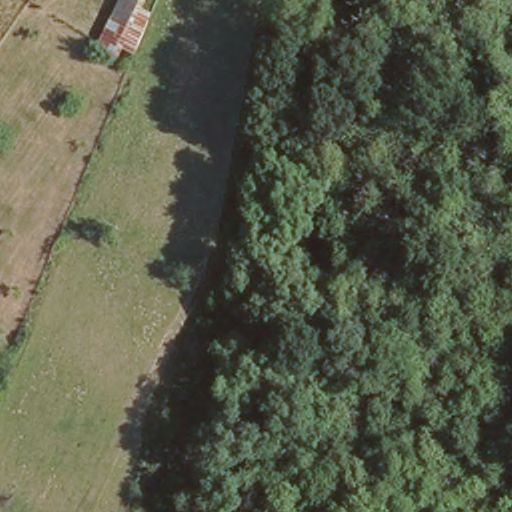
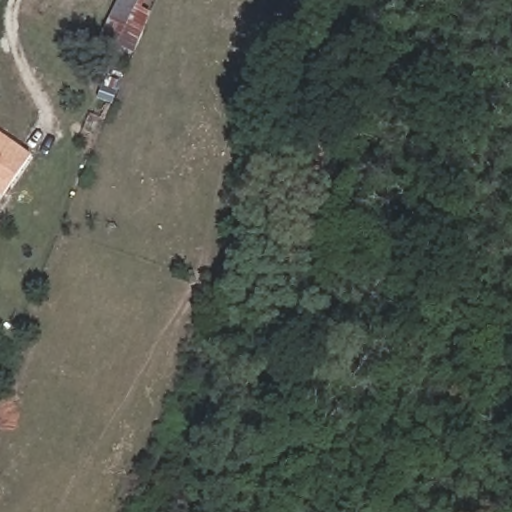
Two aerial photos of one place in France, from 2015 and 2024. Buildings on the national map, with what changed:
unchanged [(109,50),(90,41),(109,0),(132,0),(109,50)]
new [(32,154),(3,197),(0,195),(0,131),(32,154)]

